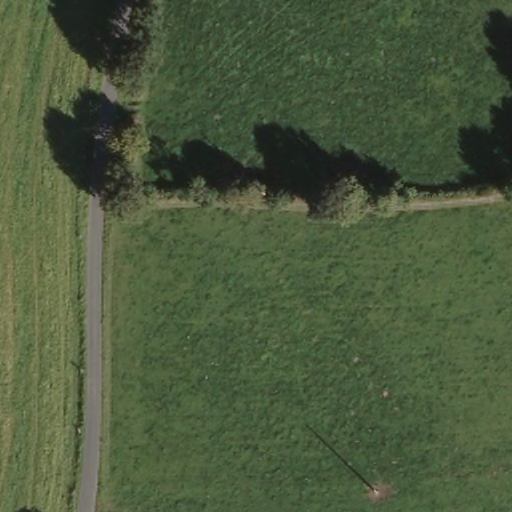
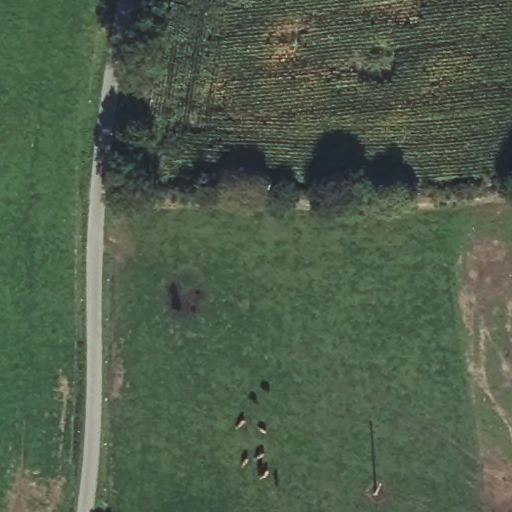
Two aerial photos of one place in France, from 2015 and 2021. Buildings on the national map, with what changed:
[]

